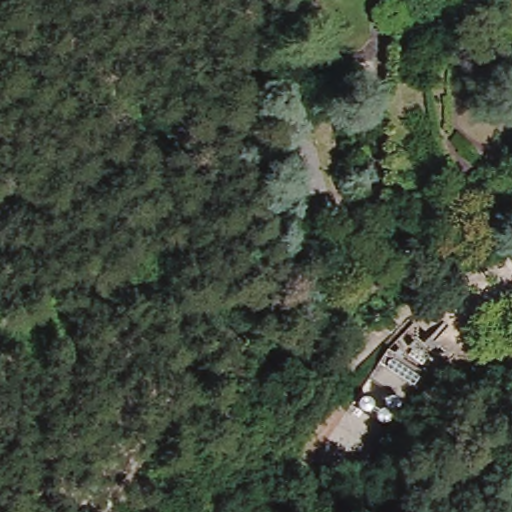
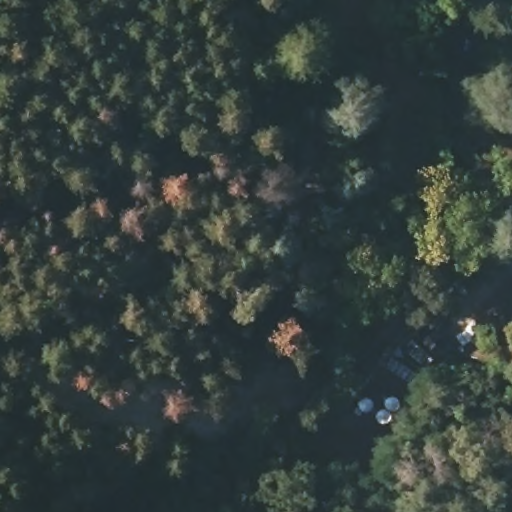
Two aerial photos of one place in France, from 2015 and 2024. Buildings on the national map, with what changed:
unchanged [(324,195),(303,201),(288,135),(310,127),(324,195)]

